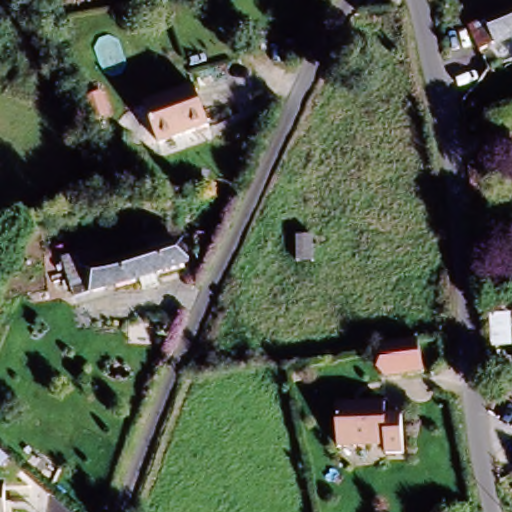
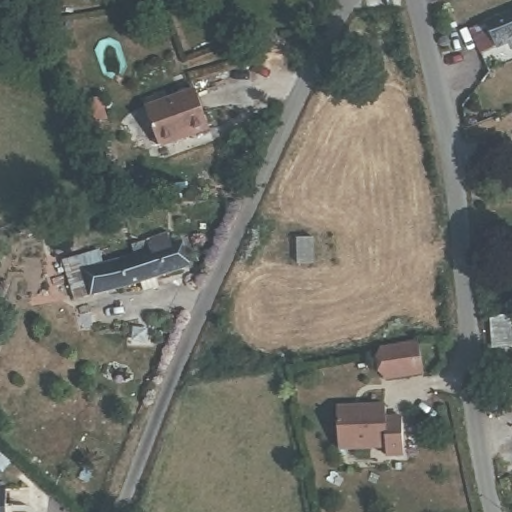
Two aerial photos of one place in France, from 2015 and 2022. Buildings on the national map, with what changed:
unchanged [(492,47),(492,46),(477,52),(467,29),(512,11),(512,39),(492,47)]
unchanged [(191,90),(205,128),(156,146),(142,108),(191,90)]
unchanged [(87,296),(75,256),(94,251),(98,264),(146,250),(143,240),(164,233),(167,244),(172,242),(180,269),(87,296)]
unchanged [(298,238),(314,238),(314,263),(298,264),(298,238)]
unchanged [(489,314),(509,315),(512,347),(512,352),(495,353),(489,314)]
unchanged [(383,380),(377,348),(414,342),(420,374),(383,380)]
unchanged [(387,400),(387,413),(403,413),(405,450),(387,450),(387,442),(339,444),(338,402),(387,400)]
unchanged [(7,512),(0,512),(0,484),(6,484),(7,512)]

